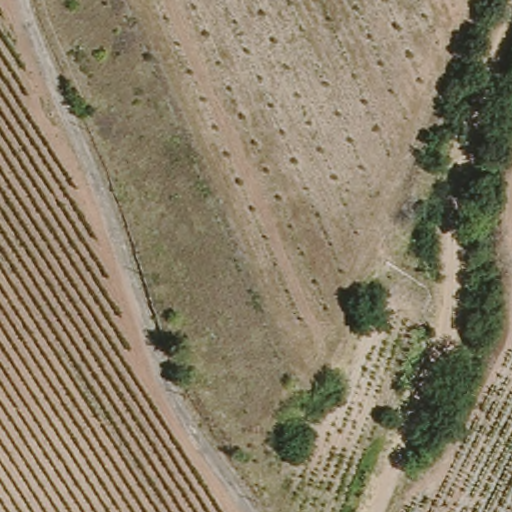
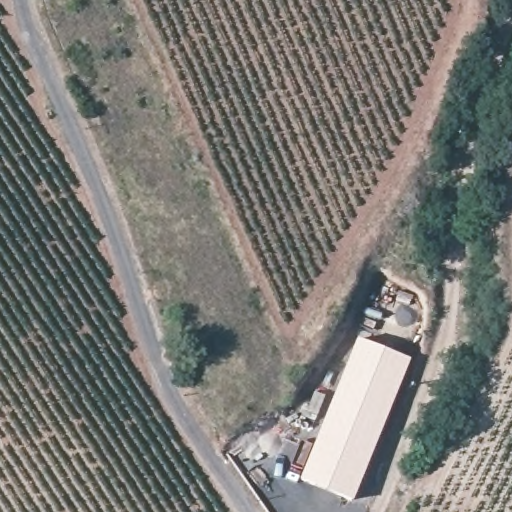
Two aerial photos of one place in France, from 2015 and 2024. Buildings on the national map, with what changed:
new [(361,340),(406,359),(350,498),(304,480),(361,340)]

